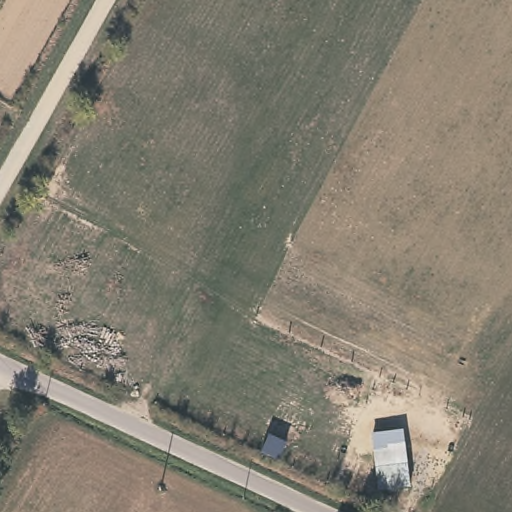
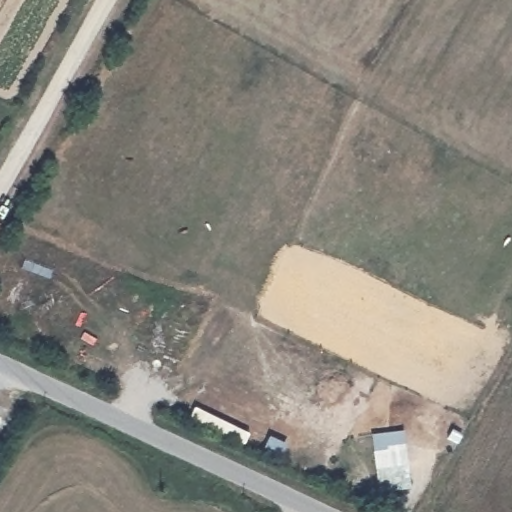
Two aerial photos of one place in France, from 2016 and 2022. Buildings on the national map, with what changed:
unchanged [(408,437),(413,487),(381,493),(374,443),(408,437)]

